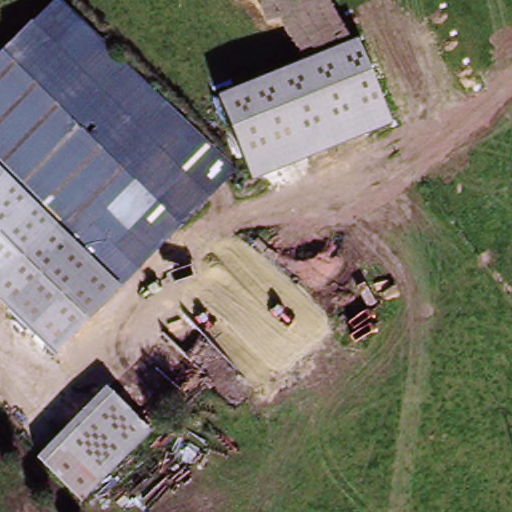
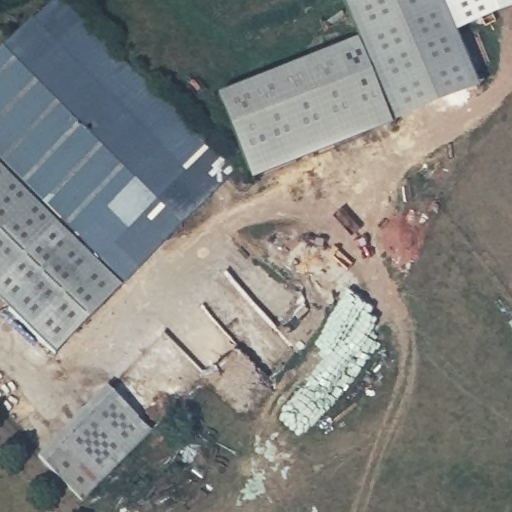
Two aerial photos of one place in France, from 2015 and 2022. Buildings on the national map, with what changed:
unchanged [(0,294),(0,57),(56,0),(58,0),(234,170),(122,283),(86,320),(57,348),(0,294)]
new [(396,125),(395,121),(363,44),(358,45),(340,0),(442,0),(478,89),(396,125)]
unchanged [(363,44),(395,121),(254,177),(225,97),(363,44)]
unchanged [(155,434),(145,444),(84,505),(40,460),(108,392),(125,405),(155,434)]

